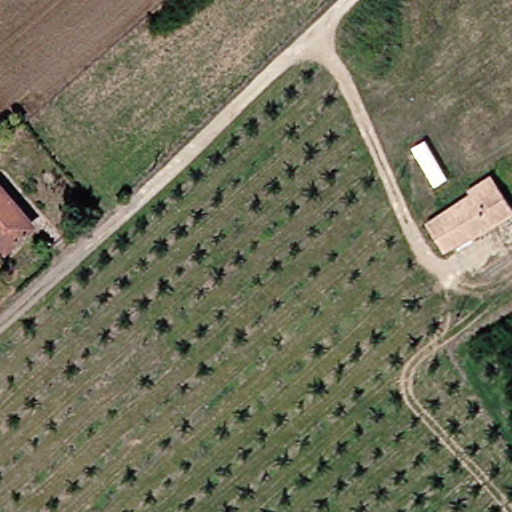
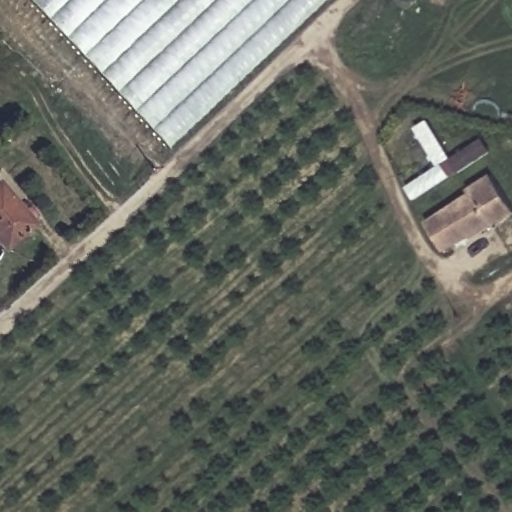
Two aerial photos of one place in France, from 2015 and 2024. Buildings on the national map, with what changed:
new [(172,150),(31,0),(331,0),(172,150)]
new [(439,167),(435,160),(416,127),(429,119),(452,159),(484,139),(492,152),(415,201),(407,187),(439,167)]
demolished [(512,208),(492,177),(512,164),(512,208)]
unchanged [(468,190),(490,175),(492,177),(512,208),(512,214),(495,224),(470,194),(468,190)]
unchanged [(30,230),(2,254),(0,252),(0,194),(30,230)]
unchanged [(473,237),(472,236),(445,250),(428,222),(470,194),(495,224),(473,237)]

